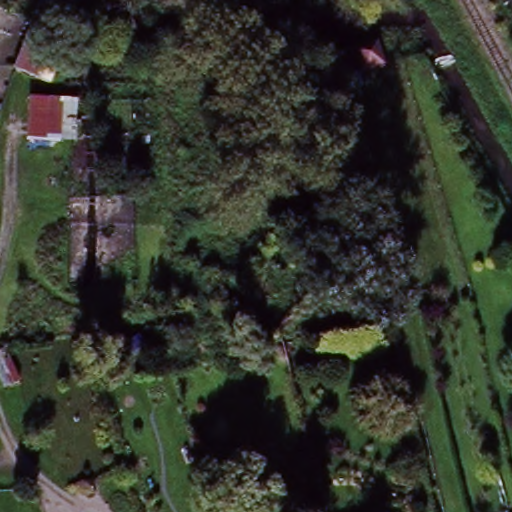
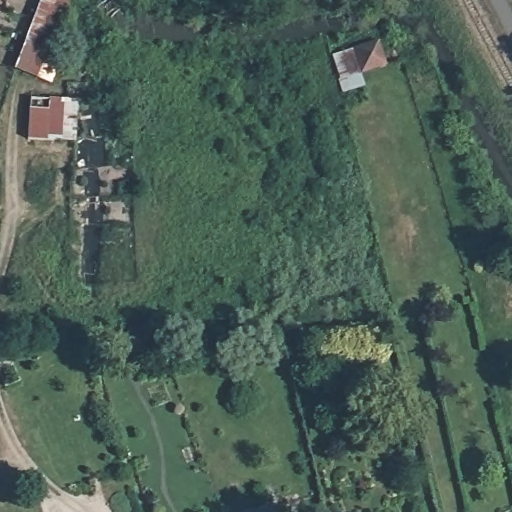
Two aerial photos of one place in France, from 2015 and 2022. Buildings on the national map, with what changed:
unchanged [(70,0),(40,77),(15,68),(40,0),(70,0)]
unchanged [(382,67),(353,76),(356,90),(337,94),(329,57),(375,44),(382,67)]
unchanged [(30,99),(75,102),(75,141),(27,139),(30,99)]
unchanged [(269,510),(270,512),(261,512),(269,510)]

